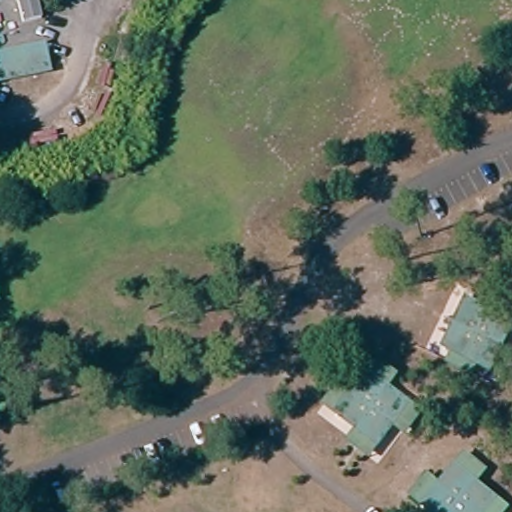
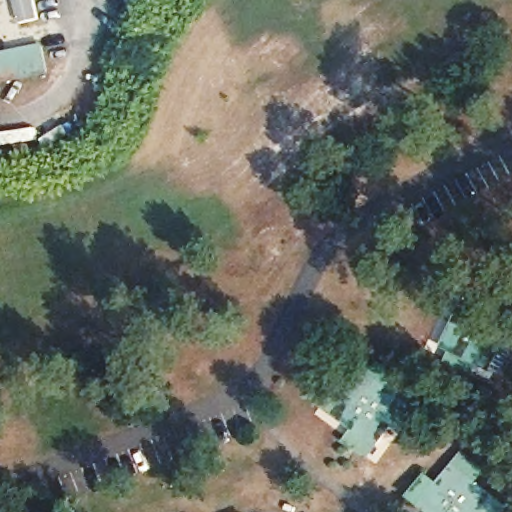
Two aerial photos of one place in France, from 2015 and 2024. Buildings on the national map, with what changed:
unchanged [(41,20),(21,25),(16,0),(37,0),(41,20)]
unchanged [(44,47),(50,73),(0,85),(0,56),(44,47)]
unchanged [(510,321),(487,368),(441,346),(465,297),(510,321)]
unchanged [(402,399),(370,440),(328,409),(360,367),(402,399)]
unchanged [(474,512),(429,512),(415,500),(448,460),(489,494),(474,512)]

